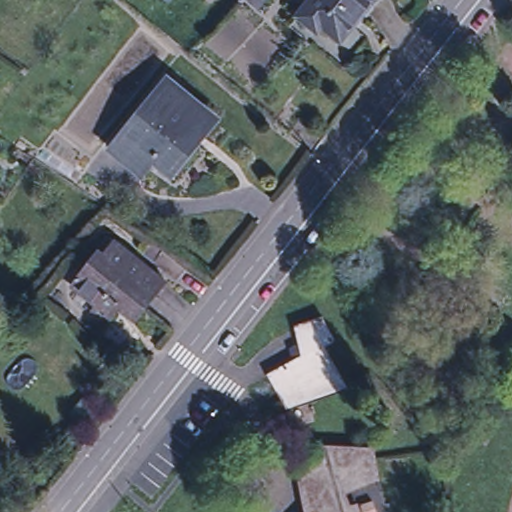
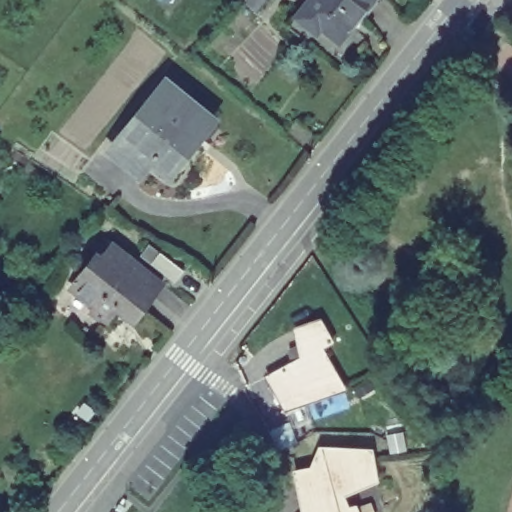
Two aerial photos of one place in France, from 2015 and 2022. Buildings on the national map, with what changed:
unchanged [(257,8),(249,0),(265,0),(257,8)]
unchanged [(343,38),(325,23),(320,29),(305,16),(318,0),(374,0),(343,38)]
unchanged [(162,78),(207,114),(165,166),(148,152),(132,171),(105,150),(122,130),(162,78)]
unchanged [(93,265),(103,252),(152,292),(126,325),(109,311),(100,320),(104,323),(96,332),(80,319),(85,314),(60,294),(87,261),(93,265)]
unchanged [(140,256),(175,279),(167,292),(132,268),(140,256)]
unchanged [(325,323),(337,344),(327,349),(347,387),(309,402),(307,400),(287,409),(272,379),(297,364),(295,354),(302,350),(300,330),(325,323)]
unchanged [(327,467),(330,462),(337,457),(342,455),(354,453),(370,455),(384,453),(390,480),(363,490),(361,487),(357,486),(352,487),(352,489),(352,493),(354,502),(361,511),(369,509),(370,512),(317,512),(308,470),(327,467)]

